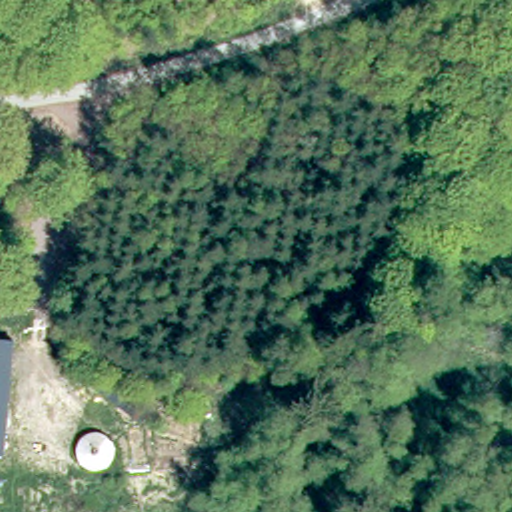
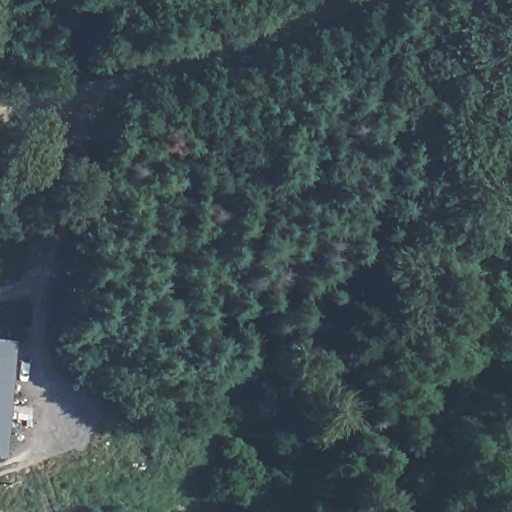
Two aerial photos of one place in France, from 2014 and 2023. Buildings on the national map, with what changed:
unchanged [(0,455),(0,344),(15,345),(12,455),(0,455)]

